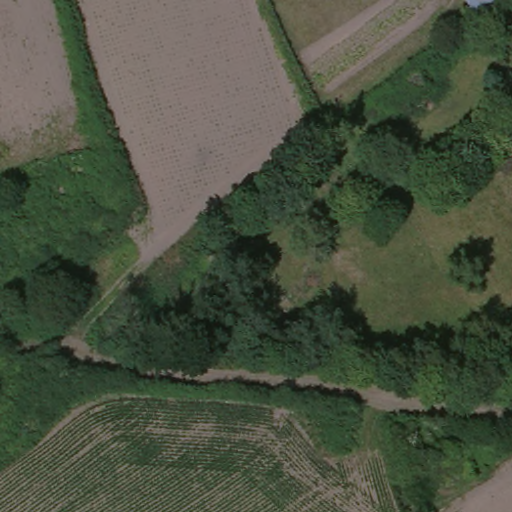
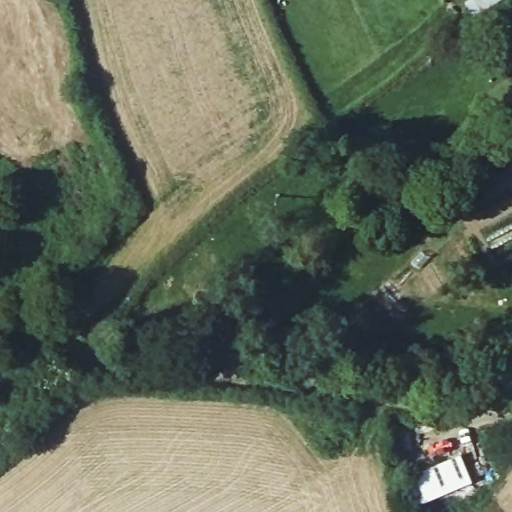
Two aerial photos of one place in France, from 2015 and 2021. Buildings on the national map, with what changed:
unchanged [(471,474),(417,497),(406,474),(459,451),(471,474)]

